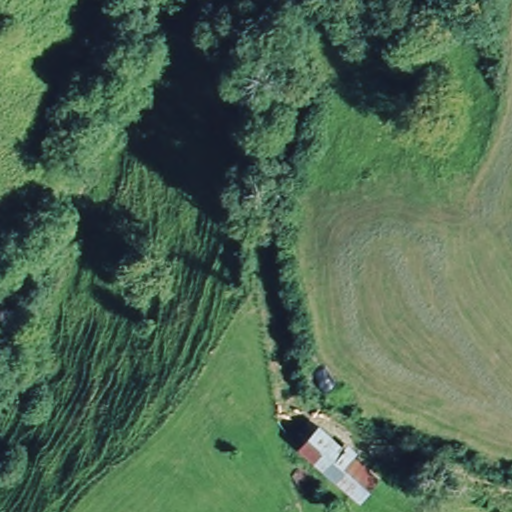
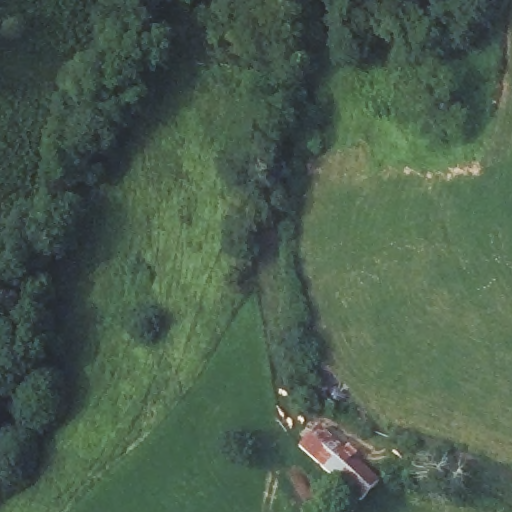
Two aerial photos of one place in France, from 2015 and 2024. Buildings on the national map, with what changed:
unchanged [(301,453),(321,431),(366,471),(376,481),(357,507),(301,453)]

